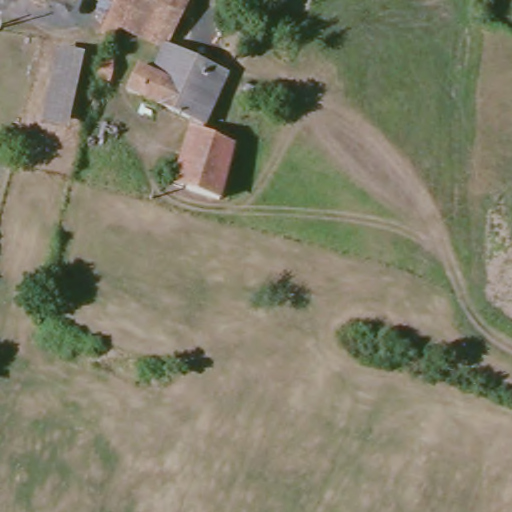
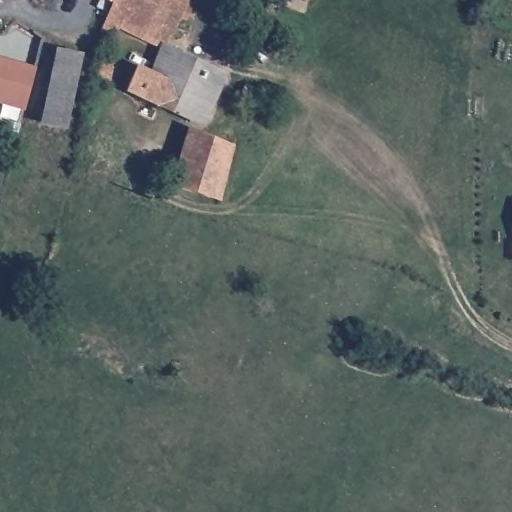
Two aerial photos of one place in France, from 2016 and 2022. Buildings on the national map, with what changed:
unchanged [(143,39),(113,26),(109,37),(104,35),(97,31),(109,1),(108,0),(159,0),(143,39)]
unchanged [(160,47),(157,45),(143,39),(159,0),(181,0),(160,47)]
unchanged [(160,47),(222,73),(199,125),(122,90),(132,66),(147,72),(157,45),(160,47)]
unchanged [(53,48),(78,54),(62,128),(36,123),(53,48)]
new [(0,102),(0,56),(35,66),(24,108),(0,102)]
unchanged [(114,62),(110,82),(97,76),(102,56),(114,62)]
unchanged [(214,199),(168,185),(185,128),(228,146),(214,199)]

